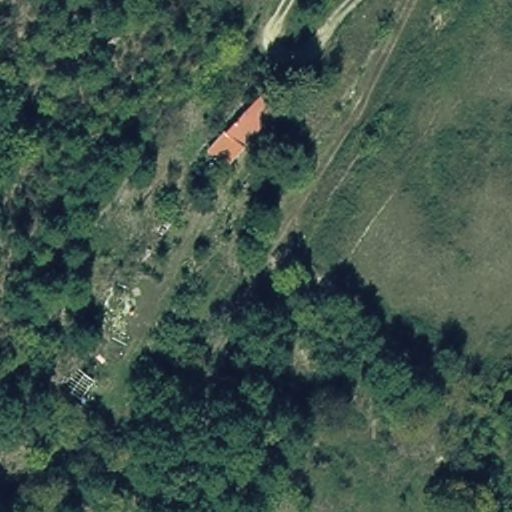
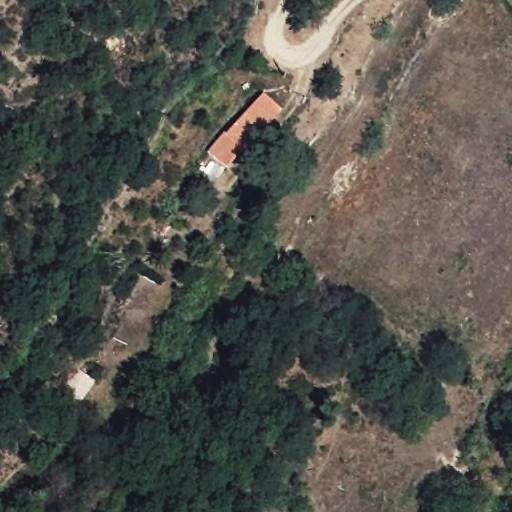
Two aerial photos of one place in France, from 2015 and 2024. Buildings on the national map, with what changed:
unchanged [(203,149),(223,125),(231,132),(262,98),(274,112),(224,169),(203,149)]

